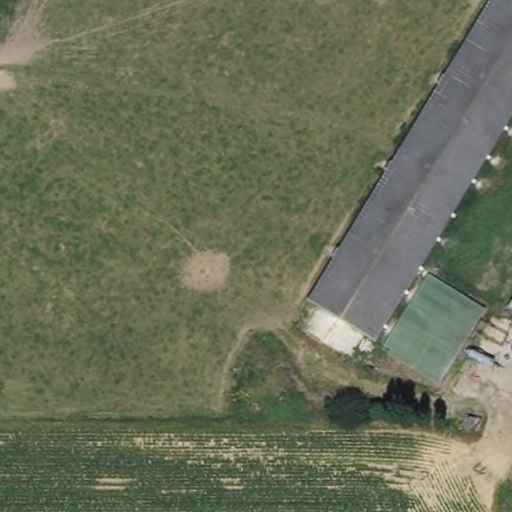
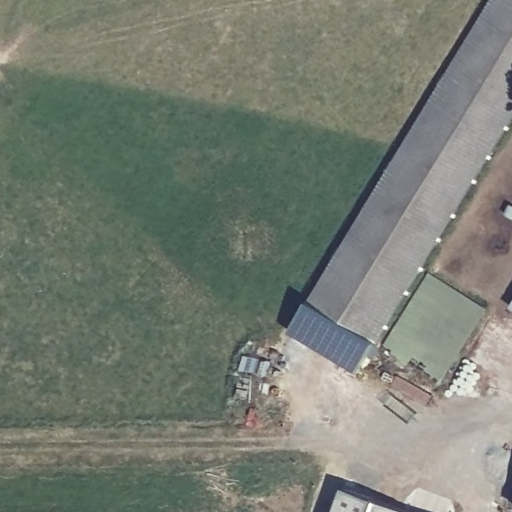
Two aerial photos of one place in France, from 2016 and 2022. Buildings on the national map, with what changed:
unchanged [(512,114),(377,342),(309,299),(492,0),(512,0),(512,114)]
new [(357,374),(290,331),(309,299),(377,342),(357,374)]
new [(335,512),(344,488),(408,512),(335,512)]

